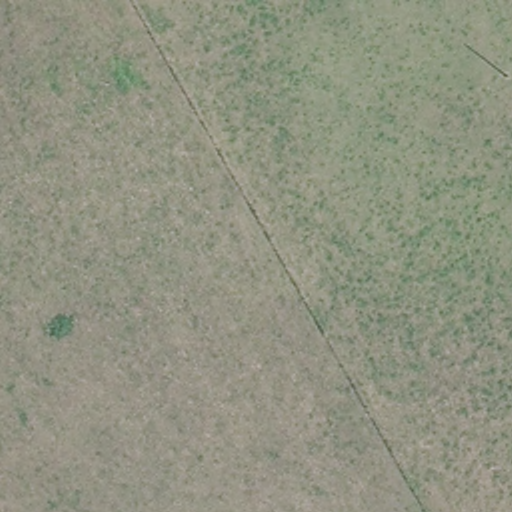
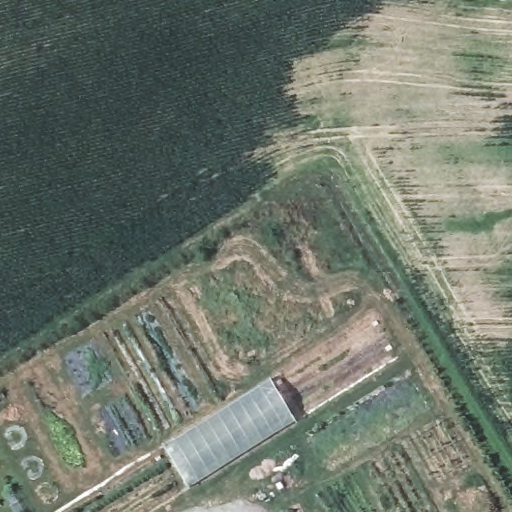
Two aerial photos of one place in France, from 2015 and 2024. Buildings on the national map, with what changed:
new [(293,425),(185,491),(161,448),(267,383),(293,425)]

